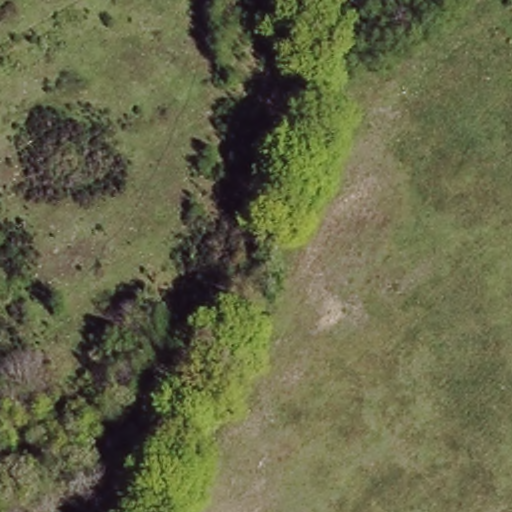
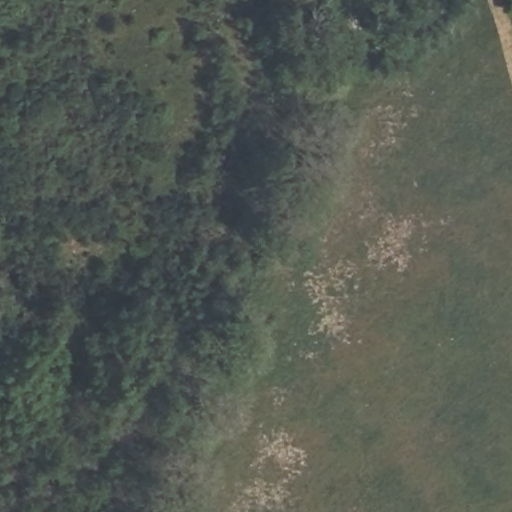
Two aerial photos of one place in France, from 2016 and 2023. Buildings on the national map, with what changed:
[]

